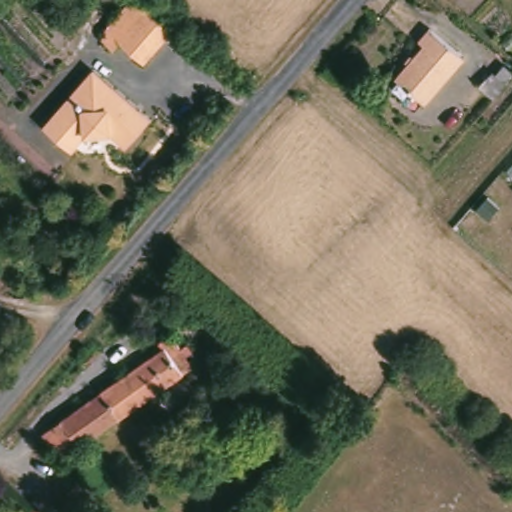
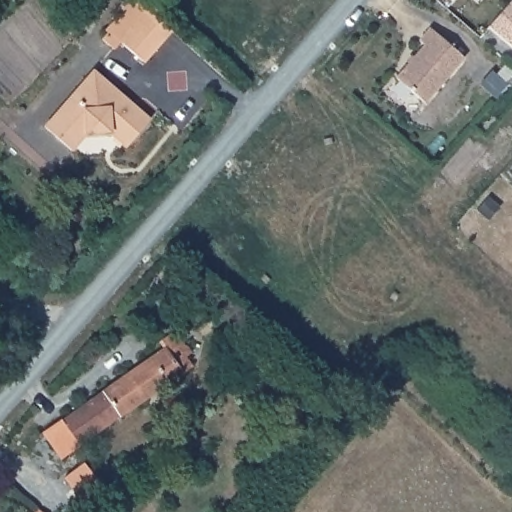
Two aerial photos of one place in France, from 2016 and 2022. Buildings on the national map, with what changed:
new [(511,0),(512,1),(512,45),(489,26),(511,0)]
unchanged [(141,65),(116,45),(106,36),(134,4),(144,12),(168,32),(141,65)]
unchanged [(460,59),(420,105),(391,81),(420,47),(415,42),(425,29),(460,59)]
unchanged [(147,122),(125,149),(107,134),(84,138),(70,155),(42,132),(91,75),(147,122)]
unchanged [(187,373),(59,462),(40,436),(159,351),(155,346),(165,340),(187,373)]
unchanged [(40,508),(44,512),(36,512),(40,508)]

